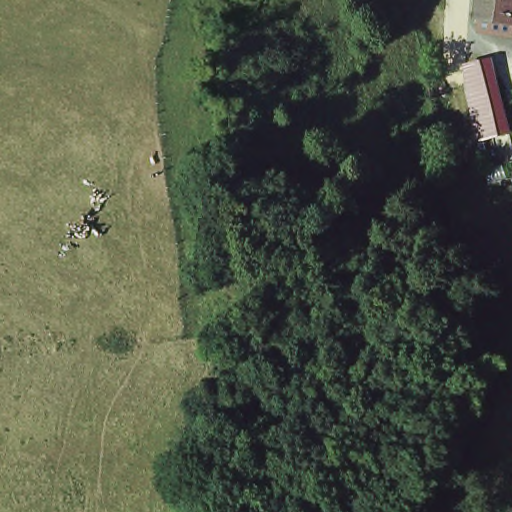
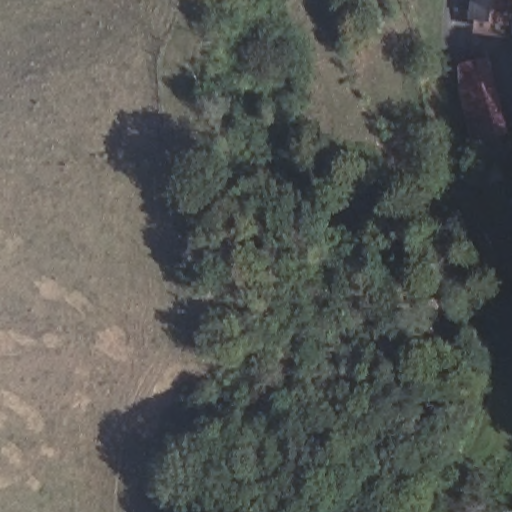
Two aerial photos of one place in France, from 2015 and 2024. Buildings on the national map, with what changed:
unchanged [(472,14),(473,0),(511,0),(508,19),(472,14)]
unchanged [(482,139),(469,89),(469,63),(490,59),(507,133),(482,139)]
unchanged [(490,223),(502,262),(470,275),(458,235),(490,223)]

